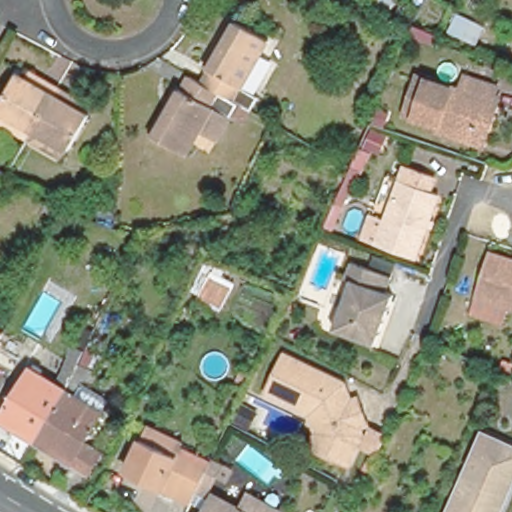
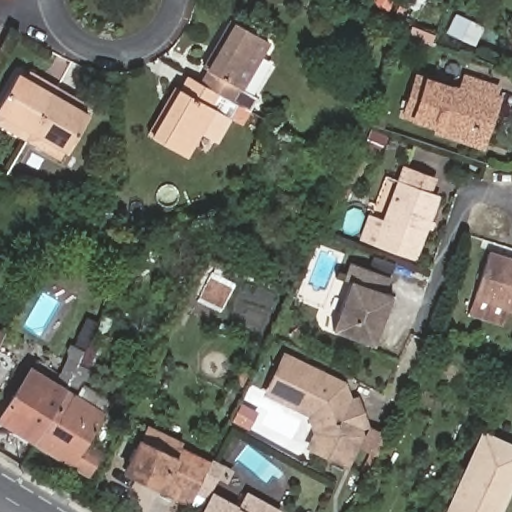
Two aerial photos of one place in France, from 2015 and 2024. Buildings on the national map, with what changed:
unchanged [(484,27),(475,46),(451,33),(460,15),(484,27)]
unchanged [(250,111),(242,107),(223,97),(208,89),(215,76),(212,73),(237,25),(273,45),(247,92),(263,102),(256,114),(250,111)]
unchanged [(417,27),(439,35),(435,43),(434,46),(412,37),(417,27)]
unchanged [(27,85),(32,77),(44,84),(58,92),(33,136),(0,116),(0,113),(19,80),(27,85)]
unchanged [(196,82),(208,89),(223,97),(242,107),(235,119),(219,112),(193,160),(154,139),(180,91),(188,94),(195,82),(196,82)]
unchanged [(482,146),(480,152),(440,139),(443,133),(407,122),(420,84),(462,97),(466,85),(494,94),(490,109),(494,110),(482,146)]
unchanged [(73,101),(84,107),(80,115),(88,119),(67,155),(33,136),(58,92),(73,101)]
unchanged [(365,213),(379,218),(393,179),(398,165),(426,174),(421,189),(431,192),(422,215),(429,217),(426,226),(419,224),(408,255),(370,242),(356,237),(365,213)]
unchanged [(336,202),(352,169),(358,172),(331,229),(325,226),(336,202)]
unchanged [(512,266),(512,311),(477,300),(475,299),(488,258),(492,260),(512,266)]
unchanged [(369,262),(389,270),(386,278),(366,271),(369,262)]
unchanged [(348,287),(339,283),(345,267),(385,282),(379,297),(388,301),(368,352),(328,336),(348,287)]
unchanged [(191,304),(203,278),(224,289),(211,315),(191,304)]
unchanged [(0,339),(0,329),(4,331),(0,339)]
unchanged [(369,422),(361,425),(363,434),(350,461),(311,443),(318,430),(310,413),(267,392),(285,354),(309,366),(306,372),(318,377),(321,371),(347,383),(349,388),(352,398),(360,396),(369,422)]
unchanged [(67,380),(77,355),(99,365),(84,387),(67,380)]
unchanged [(0,417),(29,367),(63,388),(63,389),(38,441),(0,417)]
unchanged [(63,389),(63,388),(104,413),(88,442),(102,452),(89,473),(38,441),(63,389)]
unchanged [(504,432),(502,437),(512,442),(512,468),(492,512),(445,512),(485,423),(504,432)]
unchanged [(225,482),(216,477),(207,495),(198,490),(193,501),(176,492),(165,487),(129,470),(141,443),(178,460),(180,456),(184,447),(196,452),(212,460),(211,463),(230,472),(225,482)]
unchanged [(208,495),(235,510),(243,494),(249,500),(258,505),(267,508),(274,511),(274,512),(199,512),(208,495)]

